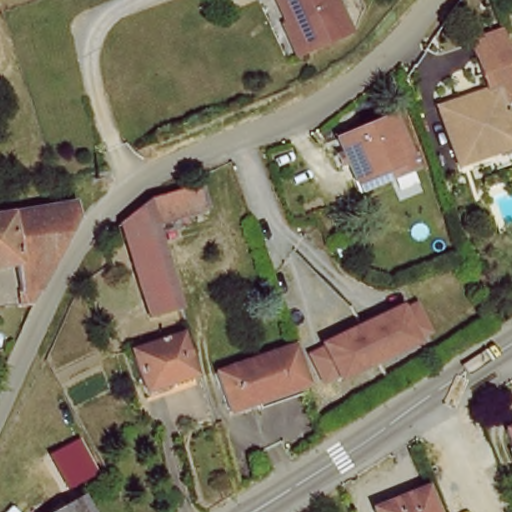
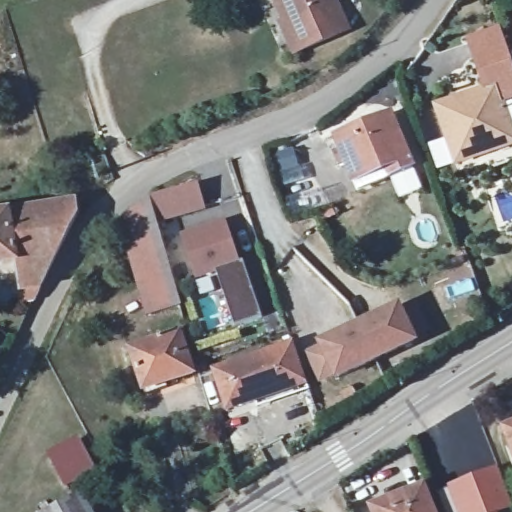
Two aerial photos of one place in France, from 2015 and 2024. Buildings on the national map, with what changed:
unchanged [(292,35),(277,0),(332,0),(352,42),(314,60),(298,68),(284,38),(292,35)]
unchanged [(500,102),(511,137),(486,146),(489,155),(454,166),(434,106),(483,89),(468,41),(500,30),(512,66),(512,99),(500,102)]
unchanged [(387,114),(410,164),(359,188),(336,137),(387,114)]
unchanged [(260,141),(282,132),(284,139),(285,142),(263,151),(252,155),(249,147),(248,145),(260,141)]
unchanged [(201,182),(206,203),(156,218),(151,197),(201,182)]
unchanged [(72,197),(81,210),(77,219),(58,255),(39,297),(21,300),(16,260),(0,263),(0,210),(72,197)]
unchanged [(183,320),(155,327),(126,222),(140,207),(148,200),(151,197),(156,218),(183,320)]
new [(225,220),(239,262),(243,261),(261,318),(235,327),(217,274),(195,281),(181,236),(225,220)]
unchanged [(143,330),(118,232),(126,222),(155,327),(143,330)]
unchanged [(332,380),(314,344),(393,307),(410,343),(332,380)]
unchanged [(181,337),(191,378),(142,392),(132,350),(181,337)]
unchanged [(296,389),(240,407),(228,367),(284,350),(296,389)]
unchanged [(502,426),(512,422),(512,454),(502,426)]
new [(80,436),(100,475),(68,494),(47,455),(80,436)]
new [(444,486),(498,465),(512,504),(512,509),(503,512),(454,512),(444,486)]
unchanged [(425,490),(431,512),(374,512),(372,505),(425,490)]
unchanged [(84,496),(92,512),(54,512),(84,496)]

